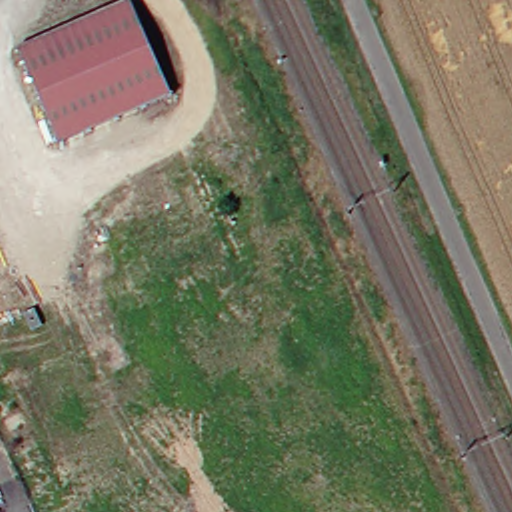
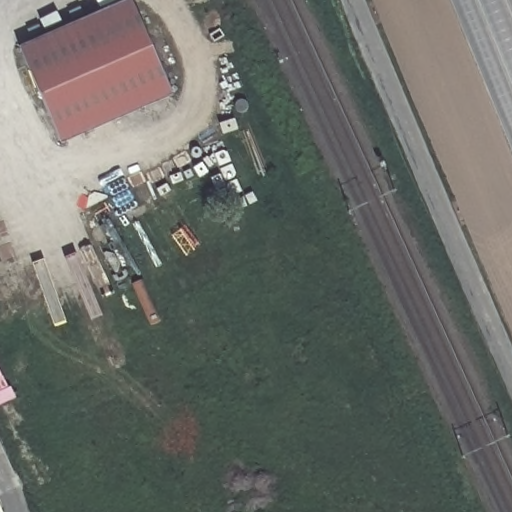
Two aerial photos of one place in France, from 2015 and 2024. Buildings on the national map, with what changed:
new [(512,0),(512,153),(451,0),(512,0)]
unchanged [(122,1),(165,94),(56,145),(12,52),(122,1)]

